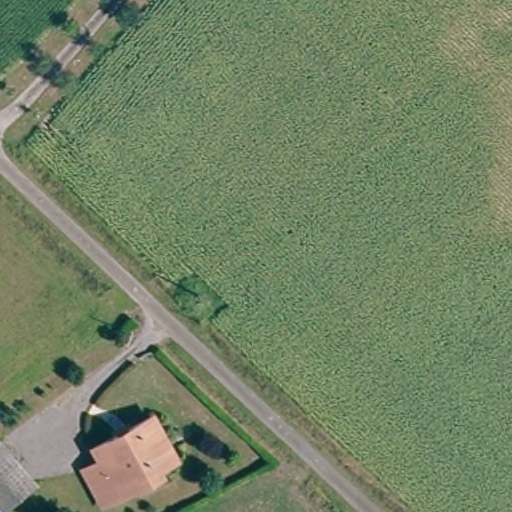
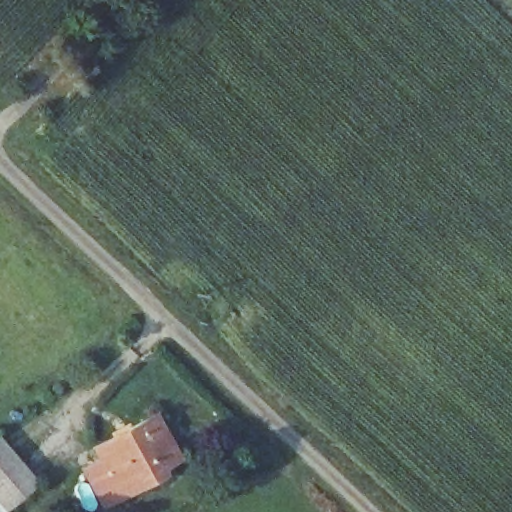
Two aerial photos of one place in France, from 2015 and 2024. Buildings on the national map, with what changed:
unchanged [(111,461),(106,451),(163,421),(184,463),(147,482),(144,476),(123,487),(129,498),(114,505),(95,469),(111,461)]
unchanged [(0,503),(0,437),(32,475),(0,503)]

